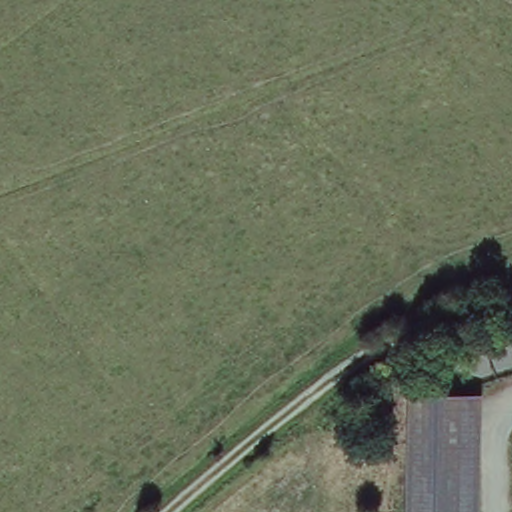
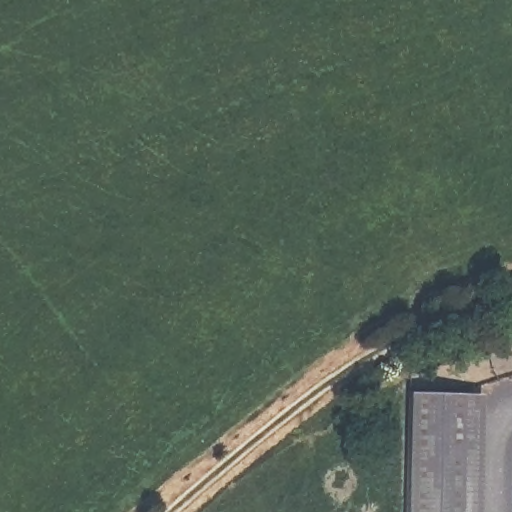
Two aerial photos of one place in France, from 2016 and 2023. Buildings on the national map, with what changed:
unchanged [(480,393),(475,512),(403,512),(407,391),(480,393)]

